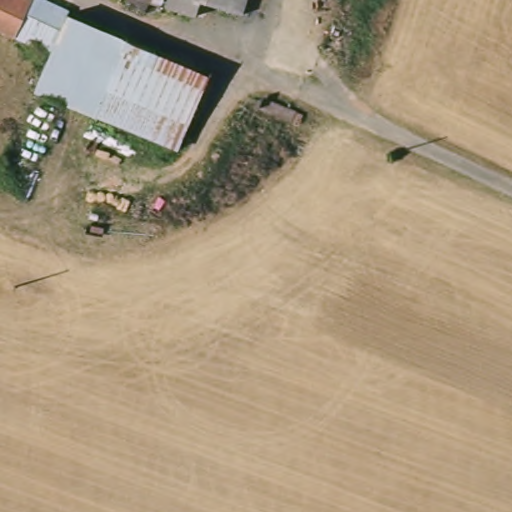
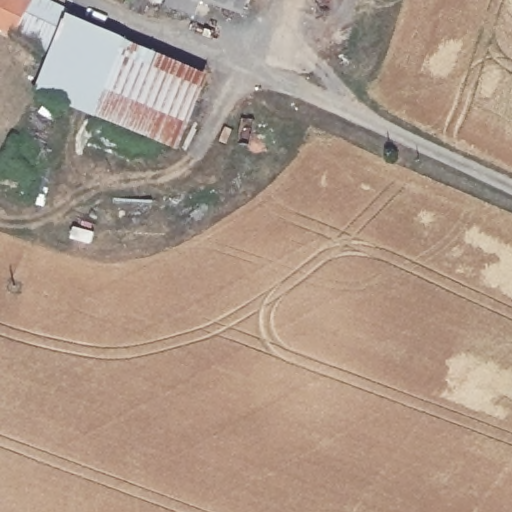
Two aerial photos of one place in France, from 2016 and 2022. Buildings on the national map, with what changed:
unchanged [(52,61),(0,39),(0,0),(39,0),(74,15),(71,21),(52,61)]
unchanged [(155,0),(153,7),(133,1),(134,0),(155,0)]
unchanged [(248,17),(207,5),(201,19),(172,9),(176,0),(251,0),(254,1),(248,17)]
unchanged [(210,81),(175,158),(35,97),(52,61),(71,21),(210,81)]

